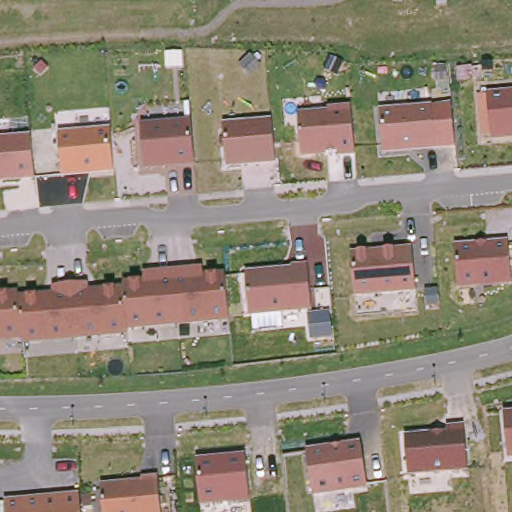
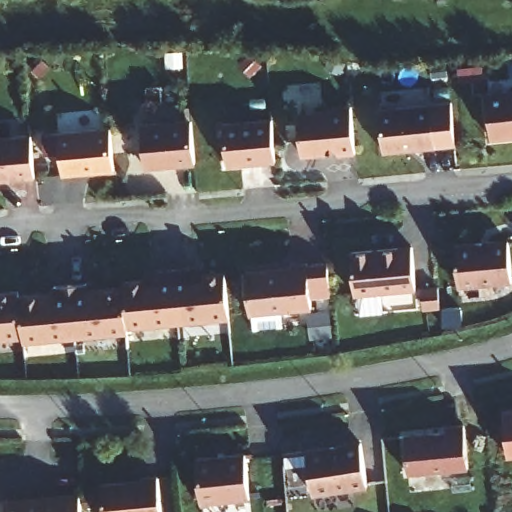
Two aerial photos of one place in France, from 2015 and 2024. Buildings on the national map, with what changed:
unchanged [(487,97),(487,93),(512,91),(512,139),(492,141),(492,134),(482,136),(477,96),(487,97)]
unchanged [(452,104),(456,149),(382,154),(380,110),(452,104)]
unchanged [(327,108),(351,106),(355,156),(337,157),(337,155),(302,158),(298,114),(328,111),(327,108)]
unchanged [(195,166),(146,169),(141,124),(190,119),(195,166)]
unchanged [(275,164),(227,168),(223,125),(272,121),(275,164)]
unchanged [(114,173),(62,178),(57,133),(110,129),(114,173)]
unchanged [(32,136),(35,180),(0,182),(0,131),(1,139),(32,136)]
unchanged [(508,240),(512,285),(458,289),(454,245),(508,240)]
unchanged [(415,292),(356,298),(352,252),(411,246),(415,292)]
unchanged [(292,265),(307,264),(312,310),(282,313),(284,329),(253,331),(252,316),(249,316),(245,273),(292,268),(292,265)]
unchanged [(229,321),(127,331),(127,336),(24,345),(24,340),(0,342),(0,292),(20,291),(20,297),(52,294),(52,287),(89,284),(90,291),(122,288),(122,283),(144,281),(143,273),(203,267),(204,275),(225,274),(229,321)]
unchanged [(509,458),(505,412),(512,411),(512,458),(509,458)]
unchanged [(465,425),(468,470),(409,475),(405,434),(447,430),(447,426),(465,425)]
unchanged [(367,489),(314,497),(307,449),(360,442),(367,489)]
unchanged [(249,500),(201,505),(196,459),(245,454),(249,500)]
unchanged [(161,512),(104,512),(102,484),(141,480),(142,476),(157,475),(161,512)]
unchanged [(0,512),(0,503),(5,503),(5,500),(80,494),(81,512),(0,512)]

